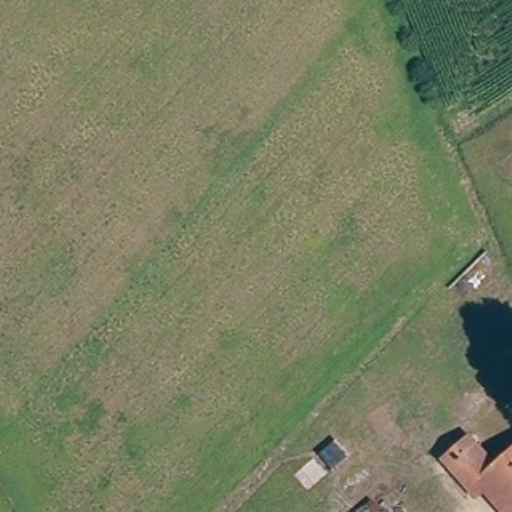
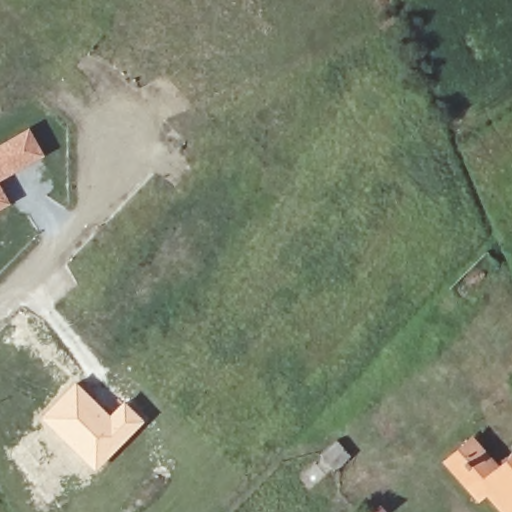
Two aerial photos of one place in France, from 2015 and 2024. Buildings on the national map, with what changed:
new [(43,155),(0,180),(0,141),(27,126),(43,155)]
new [(0,208),(0,185),(9,202),(0,208)]
new [(75,381),(108,413),(123,400),(144,420),(94,470),(40,416),(75,381)]
unchanged [(512,453),(512,512),(502,512),(485,492),(477,499),(444,460),(469,438),(495,467),(512,453)]
unchanged [(349,455),(309,490),(295,473),(336,440),(349,455)]

